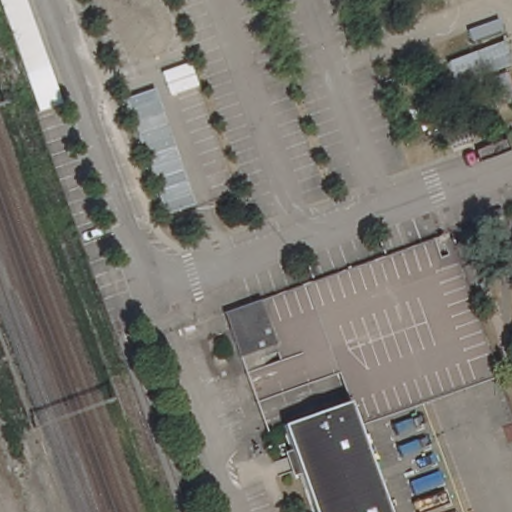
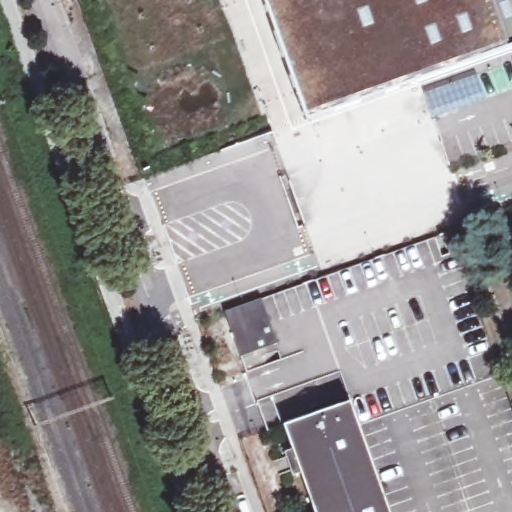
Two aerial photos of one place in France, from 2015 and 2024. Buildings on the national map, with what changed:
new [(305,118),(264,0),(512,0),(512,46),(305,118)]
demolished [(130,268),(142,301),(118,311),(105,277),(130,268)]
unchanged [(241,357),(226,313),(225,311),(263,297),(264,300),(279,343),(241,357)]
unchanged [(283,423),(352,399),(392,512),(315,512),(283,423)]

